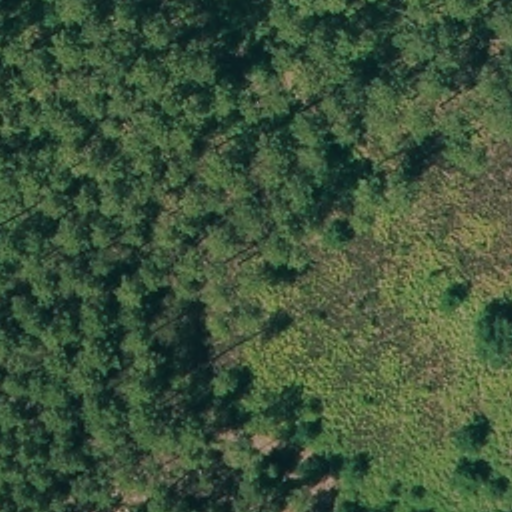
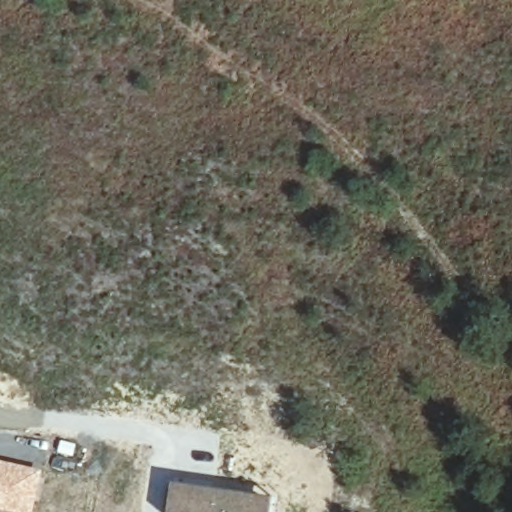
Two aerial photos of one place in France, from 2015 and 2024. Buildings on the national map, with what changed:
new [(33,512),(0,512),(0,461),(43,470),(33,512)]
new [(172,482),(273,498),(271,512),(166,512),(172,482)]

